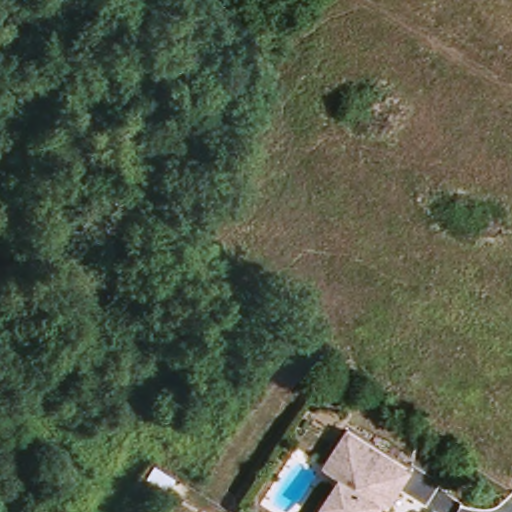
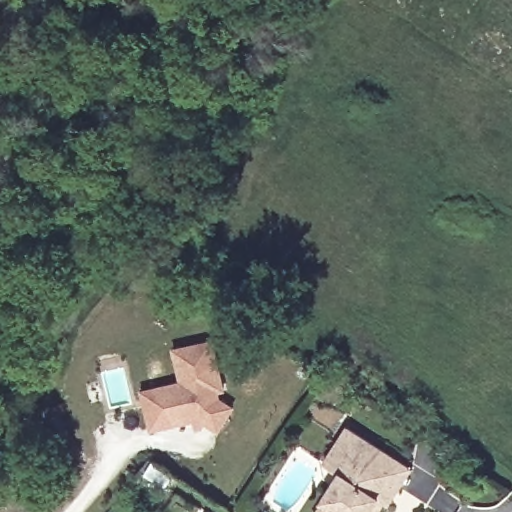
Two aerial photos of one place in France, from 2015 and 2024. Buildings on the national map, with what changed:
new [(214,341),(226,392),(219,394),(220,400),(234,409),(217,435),(205,426),(204,431),(195,433),(193,423),(151,434),(142,392),(179,383),(173,349),(214,341)]
unchanged [(326,465),(336,449),(350,428),(396,458),(414,470),(402,490),(391,507),(387,505),(383,512),(321,512),(343,476),(326,465)]

